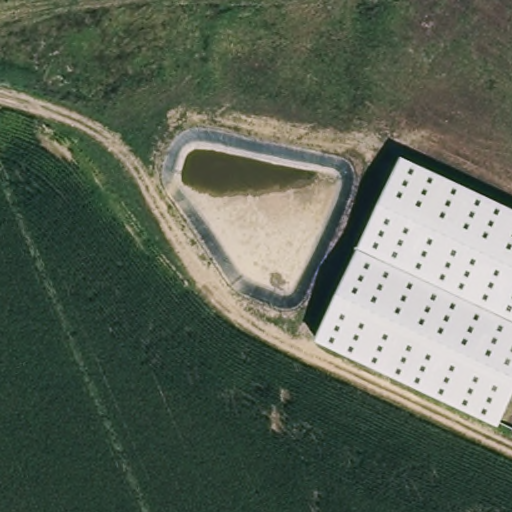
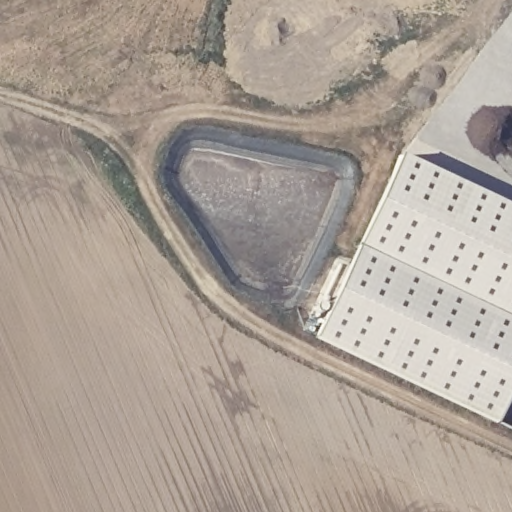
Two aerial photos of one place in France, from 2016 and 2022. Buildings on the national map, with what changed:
unchanged [(512,397),(499,425),(316,339),(402,157),(512,209),(512,397)]

